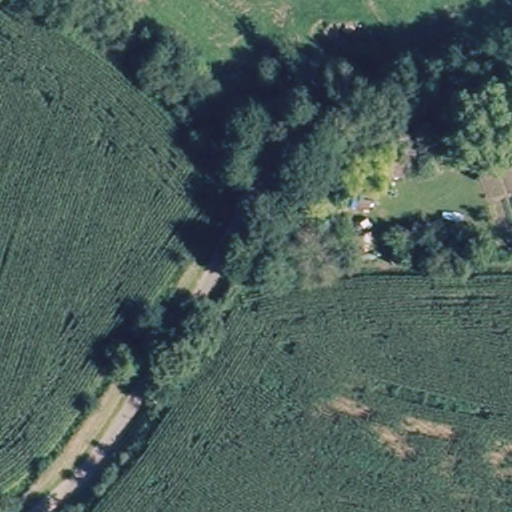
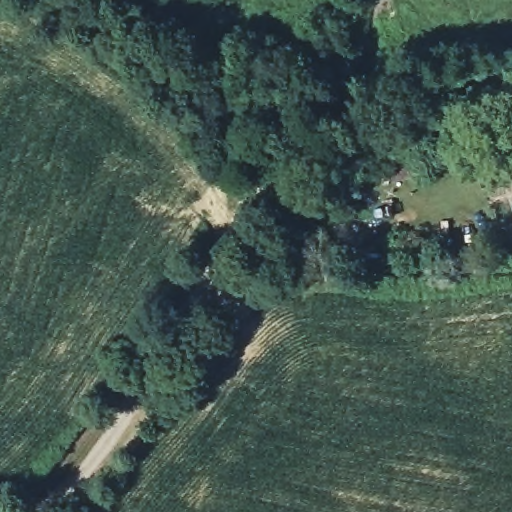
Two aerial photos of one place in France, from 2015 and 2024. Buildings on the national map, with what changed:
unchanged [(382,156),(424,150),(428,176),(387,183),(382,156)]

